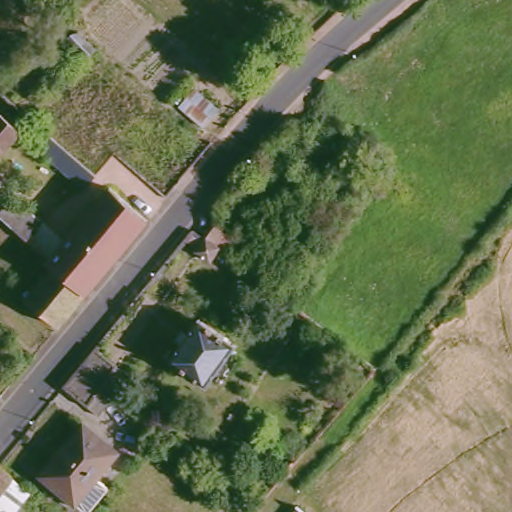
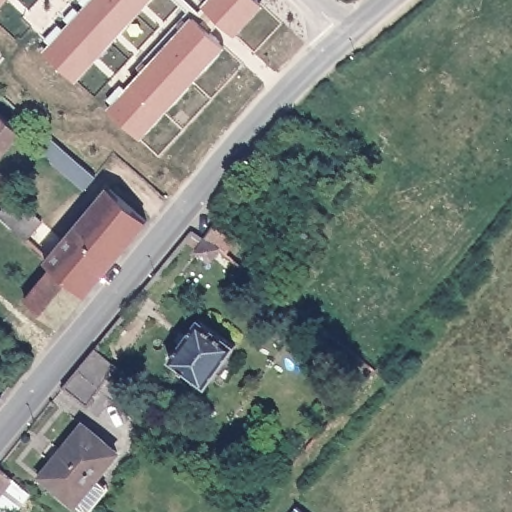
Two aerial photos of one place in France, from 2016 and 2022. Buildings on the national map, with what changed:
new [(72,75),(46,51),(92,0),(142,0),(72,75)]
new [(232,41),(199,10),(208,0),(250,0),(260,9),(232,41)]
new [(111,110),(195,19),(223,43),(137,134),(111,110)]
unchanged [(25,137),(0,166),(0,115),(25,137)]
unchanged [(100,180),(90,191),(55,164),(44,145),(51,137),(100,180)]
unchanged [(8,182),(0,191),(0,175),(8,182)]
unchanged [(118,195),(156,226),(95,299),(65,272),(59,267),(118,195)]
unchanged [(21,207),(62,243),(50,258),(8,221),(21,207)]
unchanged [(195,253),(205,239),(201,236),(210,226),(222,236),(213,245),(219,250),(208,264),(195,253)]
unchanged [(36,305),(65,272),(95,299),(67,333),(36,305)]
unchanged [(240,347),(212,389),(175,361),(205,321),(240,347)]
unchanged [(68,392),(83,374),(100,353),(126,375),(110,396),(95,414),(68,392)]
unchanged [(0,405),(0,393),(6,398),(0,405)]
unchanged [(87,510),(75,500),(43,470),(87,422),(120,451),(98,475),(109,485),(87,510)]
unchanged [(3,465),(26,483),(1,512),(0,512),(0,469),(3,465)]
unchanged [(291,512),(295,507),(300,512),(291,512)]

